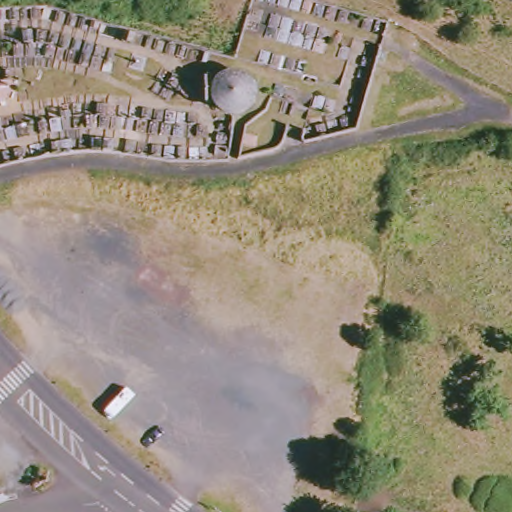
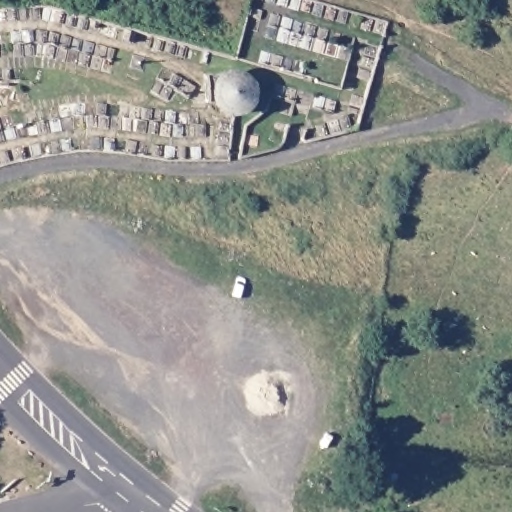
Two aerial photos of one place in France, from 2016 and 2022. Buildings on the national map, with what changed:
unchanged [(232,119),(220,109),(211,105),(212,77),(223,79),(235,71),(248,75),(256,83),(260,96),(257,116),(232,119)]

